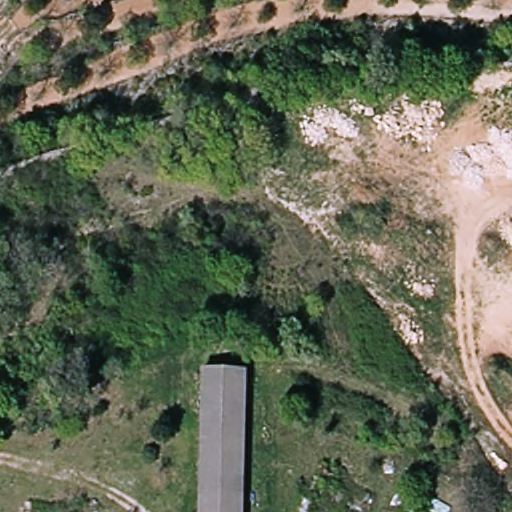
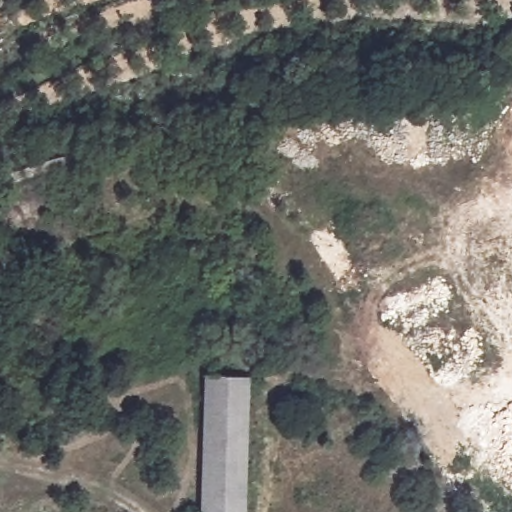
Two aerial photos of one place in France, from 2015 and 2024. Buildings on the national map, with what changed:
unchanged [(242,380),(243,512),(203,512),(201,381),(242,380)]

